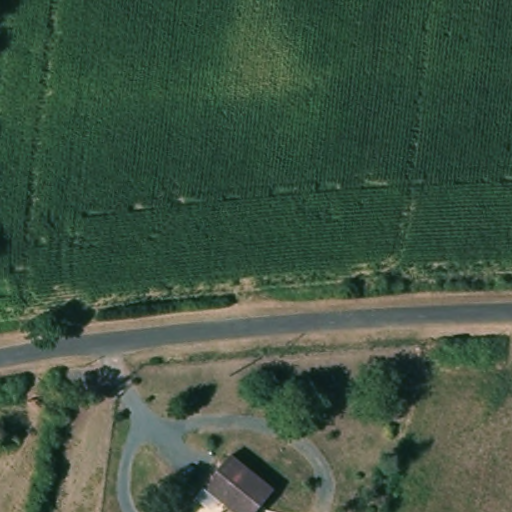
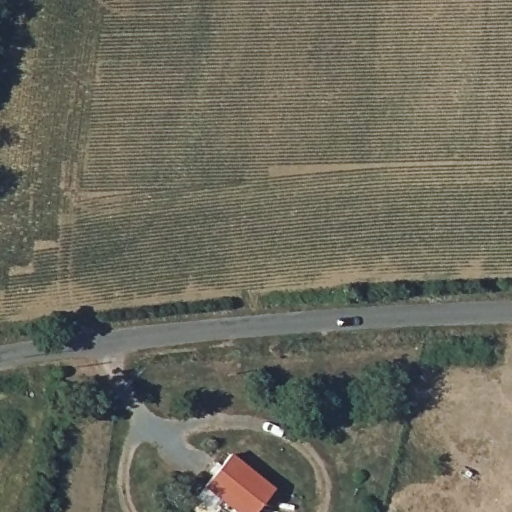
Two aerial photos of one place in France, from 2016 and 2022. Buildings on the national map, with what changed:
unchanged [(234,457),(273,493),(254,512),(235,512),(209,487),(234,457)]

